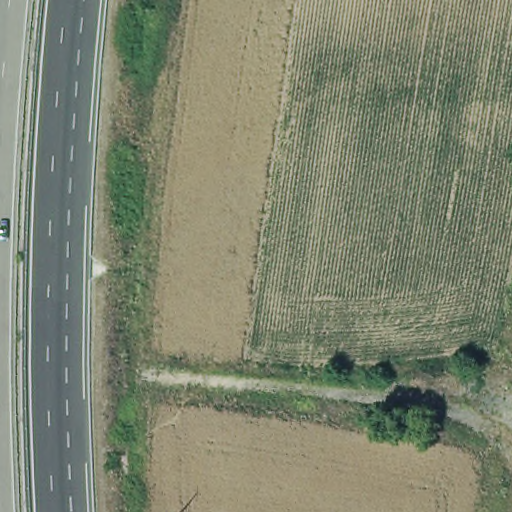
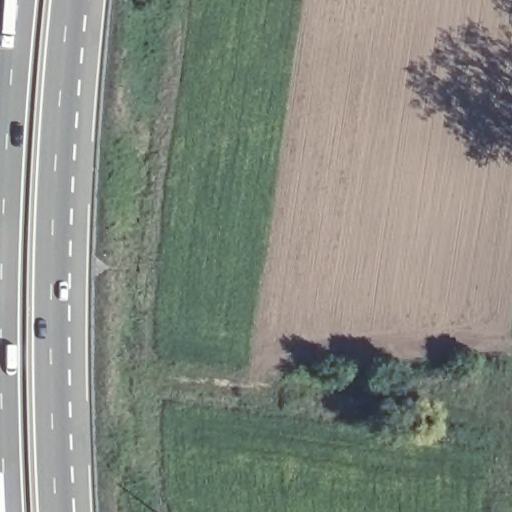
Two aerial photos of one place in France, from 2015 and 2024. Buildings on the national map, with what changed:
[]

